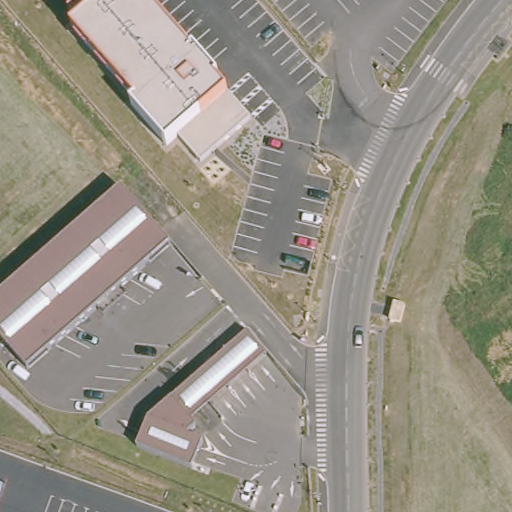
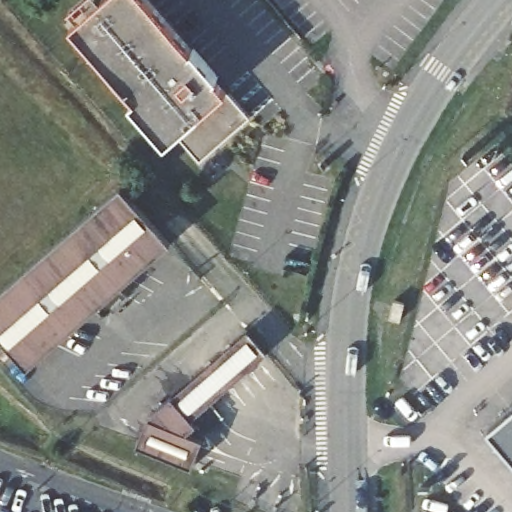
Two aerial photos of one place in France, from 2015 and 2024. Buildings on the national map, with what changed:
unchanged [(191,53),(194,50),(221,79),(218,82),(251,118),(200,156),(177,135),(167,146),(129,103),(135,98),(70,25),(75,21),(67,11),(80,0),(146,0),(191,53)]
unchanged [(26,373),(0,342),(0,293),(120,188),(170,244),(26,373)]
unchanged [(264,355),(193,417),(198,423),(186,434),(202,438),(190,471),(134,450),(147,415),(165,403),(245,332),(264,355)]
new [(486,433),(512,412),(512,464),(486,433)]

